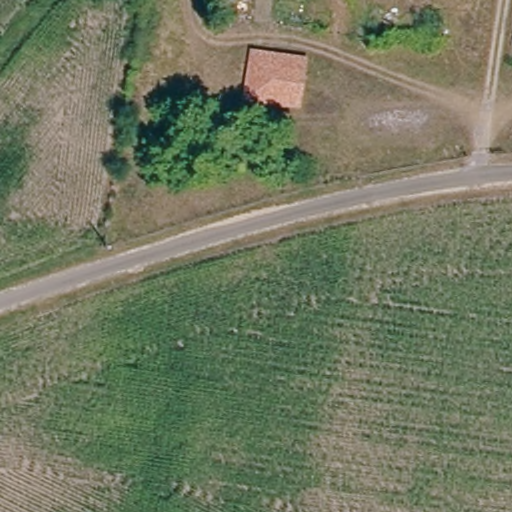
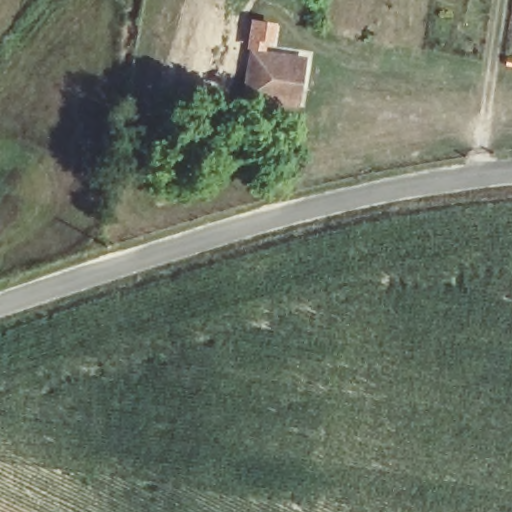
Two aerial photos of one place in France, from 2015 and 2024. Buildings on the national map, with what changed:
unchanged [(307,60),(298,113),(244,108),(252,53),(307,60)]

